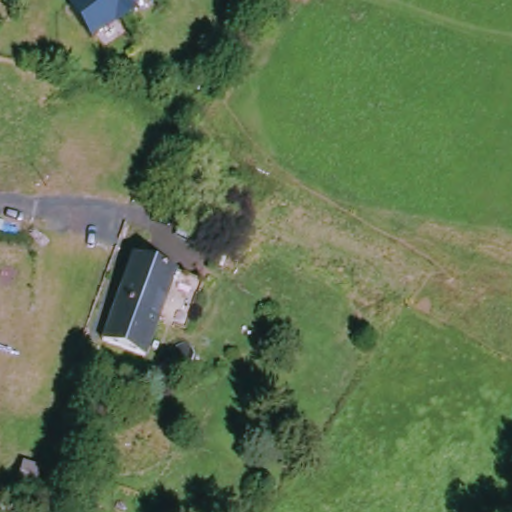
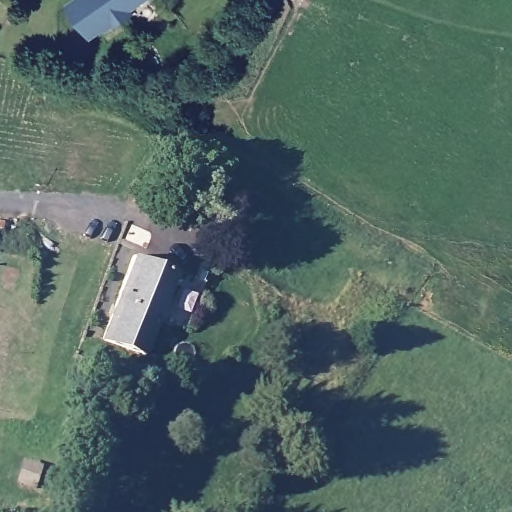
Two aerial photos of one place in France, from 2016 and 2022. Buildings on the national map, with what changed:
unchanged [(63,7),(72,0),(135,0),(86,36),(63,7)]
unchanged [(175,267),(141,349),(100,333),(133,250),(175,267)]
unchanged [(139,367),(147,371),(143,379),(135,375),(139,367)]
unchanged [(107,406),(118,409),(115,422),(104,418),(107,406)]
unchanged [(30,466),(43,471),(36,490),(22,484),(30,466)]

